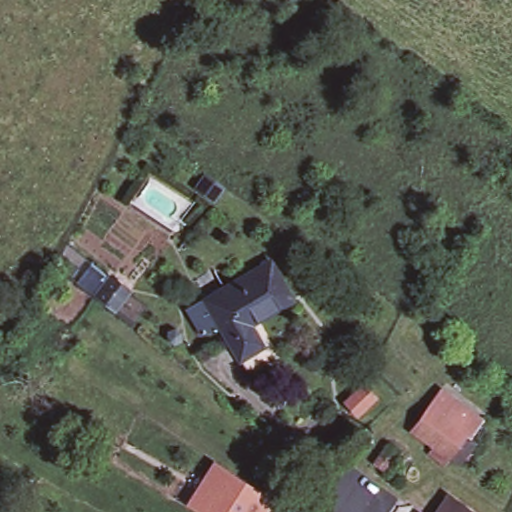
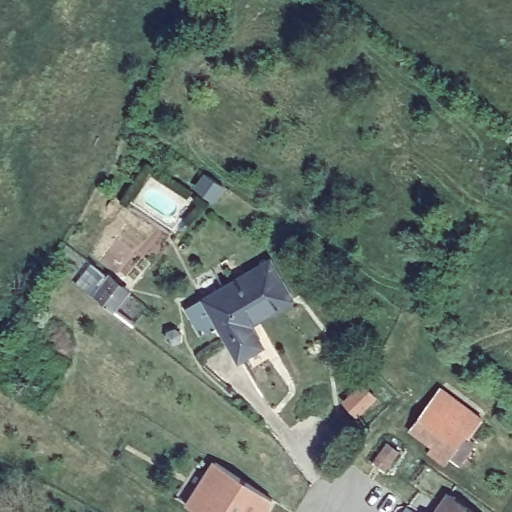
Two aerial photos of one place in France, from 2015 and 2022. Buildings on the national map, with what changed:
unchanged [(221,173),(215,182),(200,171),(206,162),(221,173)]
unchanged [(187,305),(205,295),(270,258),(290,296),(250,319),(262,341),(241,354),(219,318),(202,329),(187,305)]
unchanged [(109,264),(127,278),(110,300),(92,286),(109,264)]
unchanged [(180,331),(173,333),(167,329),(168,322),(175,318),(181,323),(180,331)]
unchanged [(355,405),(343,393),(362,375),(374,388),(355,405)]
unchanged [(425,454),(432,445),(412,430),(427,408),(438,393),(480,424),(469,439),(475,444),(459,465),(449,457),(442,466),(425,454)]
unchanged [(211,512),(207,509),(189,497),(217,454),(274,491),(261,512),(211,512)]
unchanged [(471,512),(433,512),(445,494),(471,512)]

